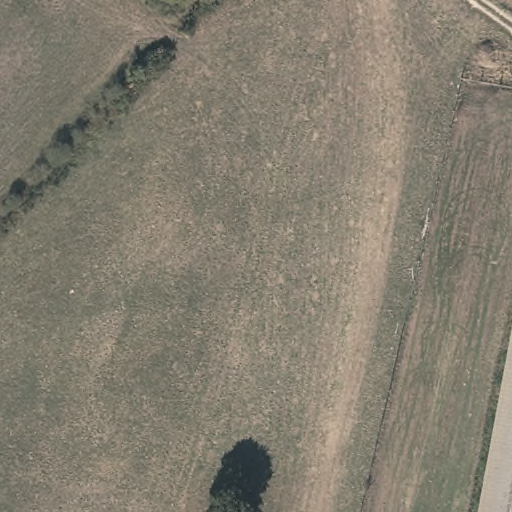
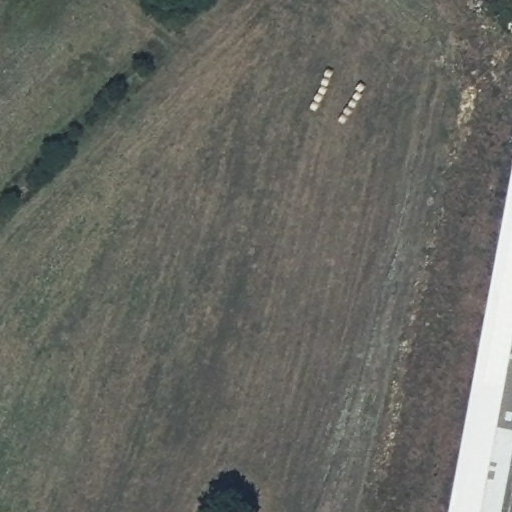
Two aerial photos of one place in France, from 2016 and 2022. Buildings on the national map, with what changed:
new [(510,361),(481,512),(449,512),(512,169),(512,350),(510,361)]
unchanged [(481,512),(510,361),(512,350),(512,512),(481,512)]

